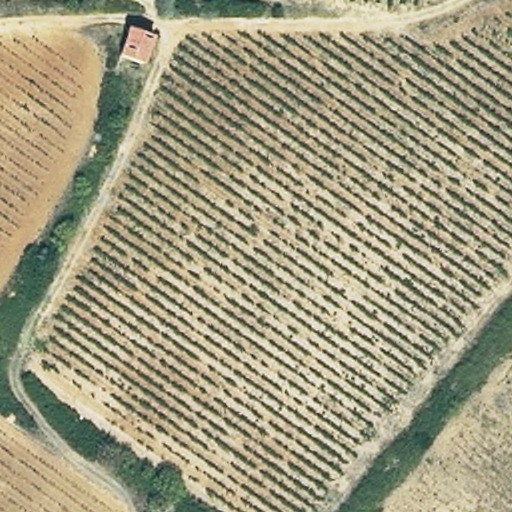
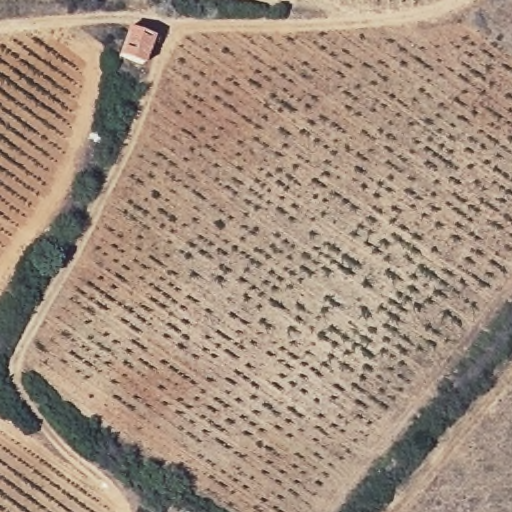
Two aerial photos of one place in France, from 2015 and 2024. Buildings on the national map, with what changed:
unchanged [(153,44),(143,75),(113,59),(127,34),(153,44)]

